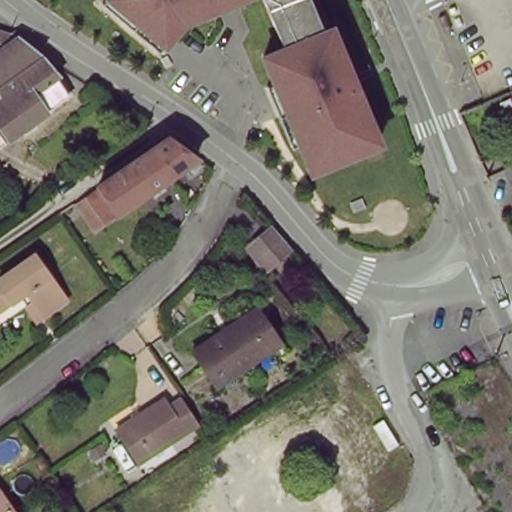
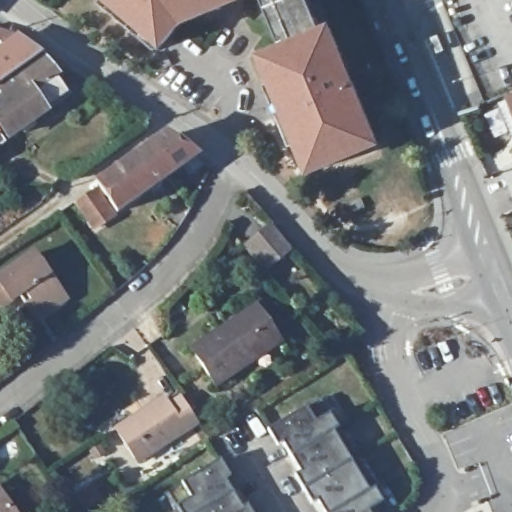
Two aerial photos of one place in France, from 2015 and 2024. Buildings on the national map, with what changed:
unchanged [(194,20),(163,50),(107,4),(110,0),(247,0),(194,20)]
unchanged [(307,172),(261,56),(280,47),(264,0),(318,0),(382,145),(307,172)]
unchanged [(31,42),(35,50),(0,74),(0,40),(15,29),(31,42)]
unchanged [(65,89),(26,115),(30,120),(18,129),(14,123),(2,132),(0,129),(0,74),(35,50),(65,89)]
unchanged [(509,90),(512,89),(512,99),(509,90)]
unchanged [(98,178),(148,145),(164,135),(192,152),(164,171),(109,207),(98,178)]
unchanged [(512,171),(512,185),(507,173),(512,171)]
unchanged [(103,212),(86,224),(70,200),(88,189),(103,212)]
unchanged [(284,225),(294,239),(268,258),(251,235),(276,216),(276,215),(284,225)]
unchanged [(68,296),(43,313),(38,316),(21,291),(0,306),(0,276),(36,251),(68,296)]
unchanged [(217,385),(193,350),(223,330),(256,306),(261,312),(281,342),(217,385)]
unchanged [(115,421),(163,390),(167,396),(181,388),(199,415),(138,454),(115,421)]
new [(323,401),(341,430),(335,433),(292,459),(284,445),(274,430),(280,426),(323,401)]
new [(335,433),(353,462),(304,491),(296,477),(301,474),(292,459),(335,433)]
new [(218,453),(227,469),(236,483),(192,508),(187,511),(169,482),(213,456),(218,453)]
new [(371,492),(337,512),(324,512),(318,502),(313,505),(304,491),(353,462),(371,492)]
new [(244,498),(249,495),(258,510),(254,512),(194,512),(192,508),(236,483),(244,498)]
new [(376,489),(389,512),(337,512),(371,492),(376,489)]
unchanged [(13,512),(0,512),(0,490),(3,495),(13,512)]
new [(260,512),(254,512),(258,510),(260,512)]

